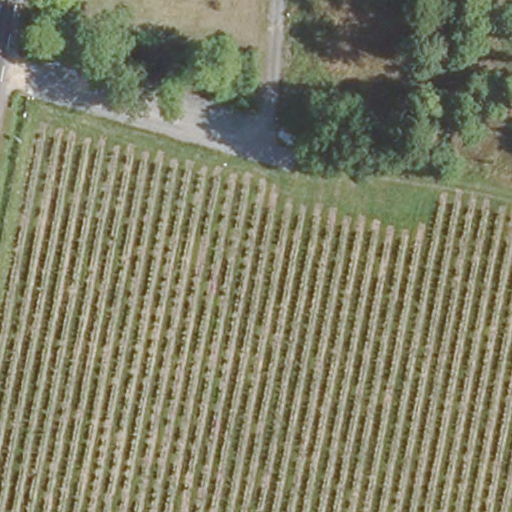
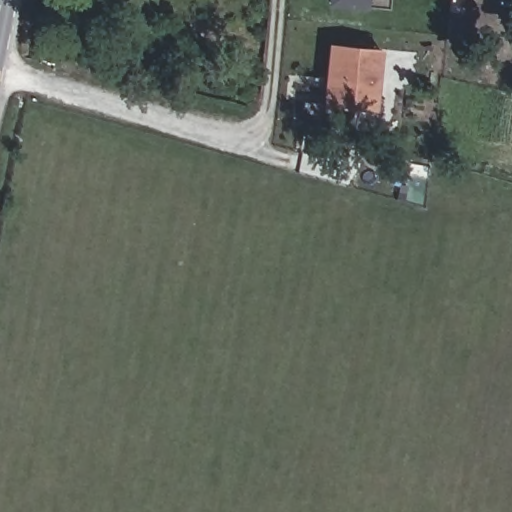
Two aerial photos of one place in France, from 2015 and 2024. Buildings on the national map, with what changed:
new [(327,5),(328,0),(368,0),(367,10),(327,5)]
new [(375,112),(320,106),(327,43),(381,49),(375,112)]

